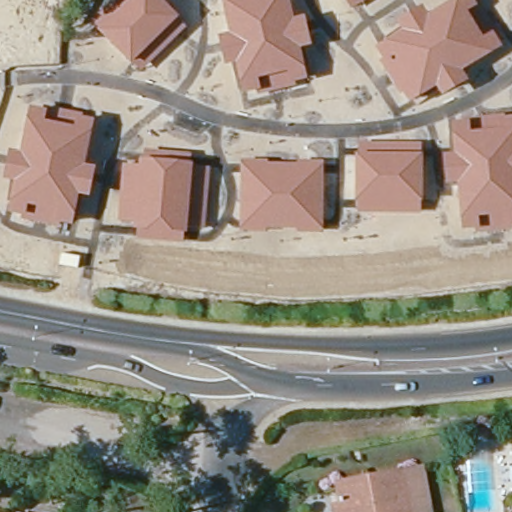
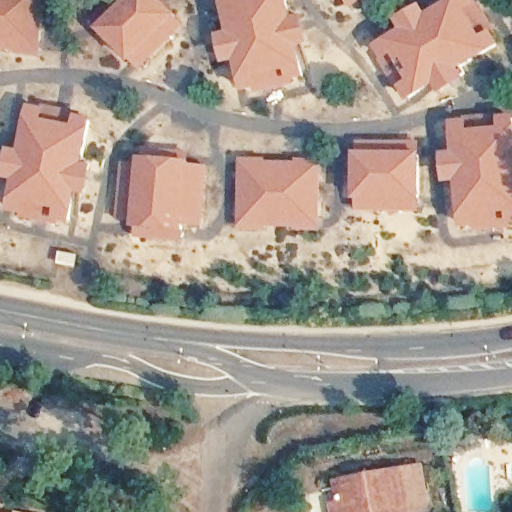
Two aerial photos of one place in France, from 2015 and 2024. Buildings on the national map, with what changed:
new [(44,57),(17,56),(17,50),(0,51),(0,0),(45,0),(44,57)]
unchanged [(188,27),(140,73),(131,66),(98,28),(92,19),(114,0),(164,0),(181,17),(188,27)]
unchanged [(295,18),(306,16),(312,46),(302,48),(309,78),(294,82),(296,86),(259,96),(257,91),(245,94),(239,63),(227,65),(222,37),(232,33),(225,0),(291,0),(295,18)]
unchanged [(353,8),(346,0),(367,0),(353,8)]
unchanged [(469,12),(483,37),(493,31),(502,47),(465,72),(471,81),(442,96),(437,88),(409,103),(403,93),(400,94),(382,62),(385,60),(378,46),(403,32),(398,21),(422,4),(429,14),(454,0),(473,0),(477,7),(469,12)]
unchanged [(46,104),(85,113),(83,118),(95,120),(92,133),(87,164),(97,167),(91,199),(80,197),(76,213),(72,226),(61,222),(58,228),(23,219),(21,214),(10,212),(11,200),(15,182),(5,179),(9,150),(23,153),(27,120),(30,106),(42,109),(46,104)]
unchanged [(468,116),(506,112),(506,118),(512,118),(512,231),(477,233),(476,228),(462,230),(458,185),(447,185),(442,154),(455,152),(454,135),(452,122),(467,121),(468,116)]
unchanged [(423,156),(423,202),(423,214),(357,213),(356,198),(359,156),(360,141),(422,143),(423,156)]
unchanged [(207,226),(189,225),(189,233),(185,232),(184,242),(136,236),(136,223),(119,221),(123,166),(140,166),(141,159),(144,159),(146,150),(190,152),(189,162),(193,162),(194,166),(211,167),(207,226)]
unchanged [(324,161),(325,231),(298,232),(298,228),(267,227),(267,232),(240,232),(242,160),(269,159),(268,163),(297,164),(297,160),(324,161)]
unchanged [(378,476),(377,468),(430,458),(438,502),(389,512),(348,512),(346,497),(354,496),(352,481),(378,476)]
unchanged [(20,511),(23,512),(1,512),(1,508),(20,511)]

